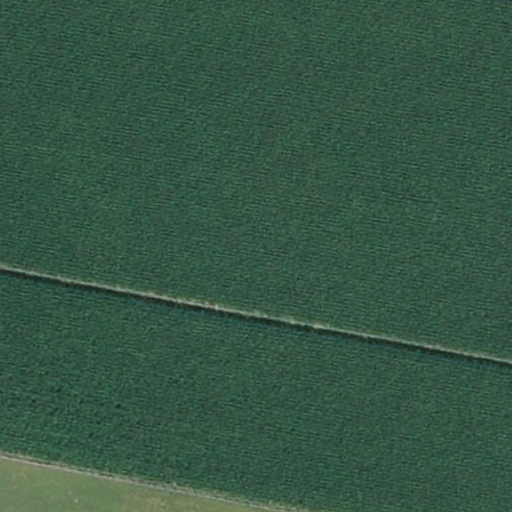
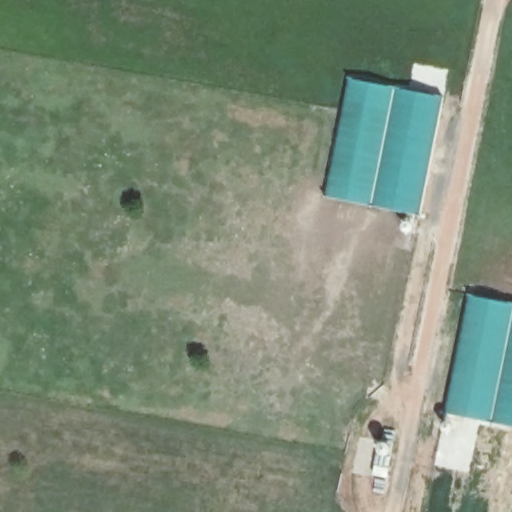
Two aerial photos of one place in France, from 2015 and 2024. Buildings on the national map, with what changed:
new [(324,200),(349,80),(437,93),(423,217),(324,200)]
new [(444,417),(466,302),(512,307),(512,428),(444,417)]

